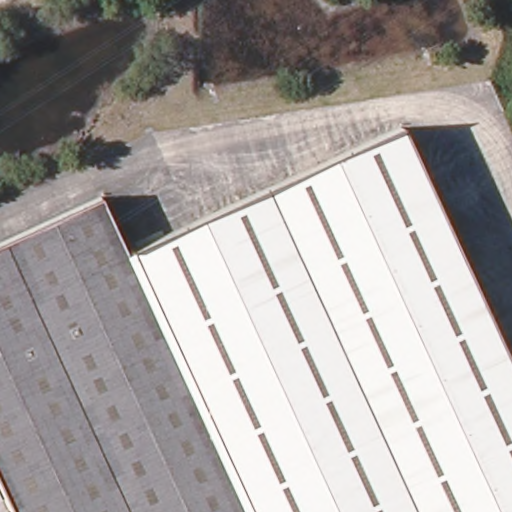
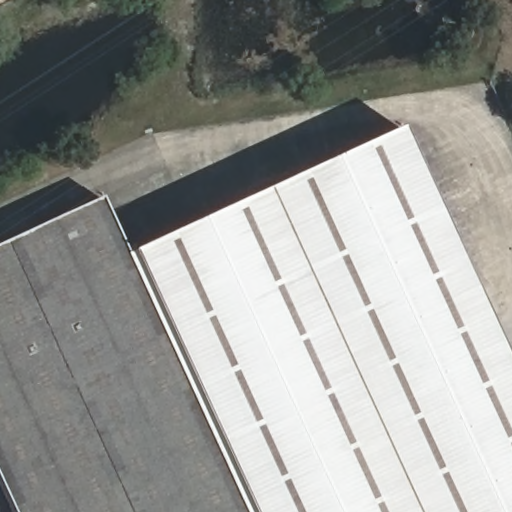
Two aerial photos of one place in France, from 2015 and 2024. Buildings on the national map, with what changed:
unchanged [(125,257),(392,134),(512,396),(512,512),(10,512),(0,490),(0,244),(99,199),(125,257)]

